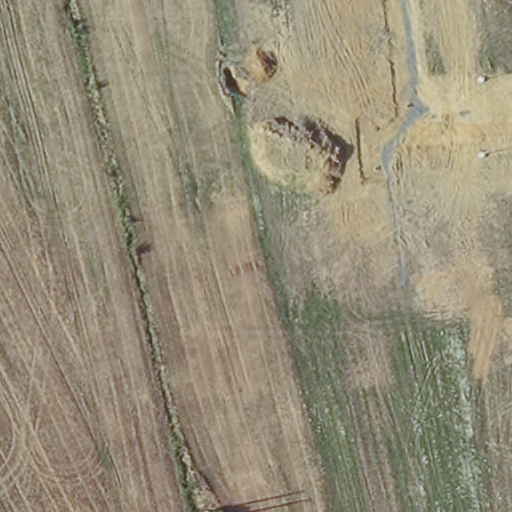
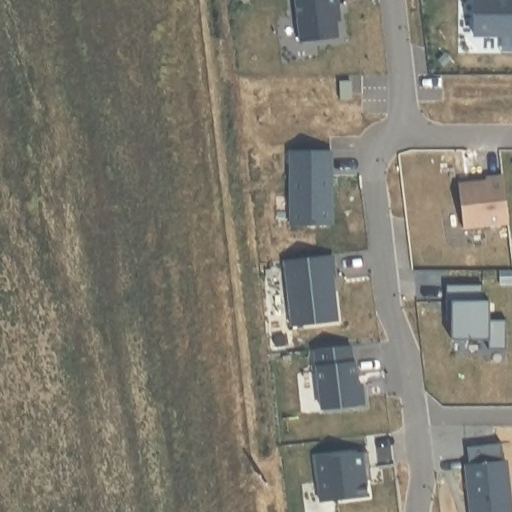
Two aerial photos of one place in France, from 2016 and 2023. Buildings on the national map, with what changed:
new [(339,9),(342,39),(305,44),(299,0),(343,0),(344,9),(339,9)]
new [(512,0),(512,38),(476,37),(476,0),(512,0)]
new [(292,155),(332,155),(332,230),(292,230),(292,155)]
new [(487,181),(487,178),(505,176),(510,223),(465,228),(460,185),(487,181)]
new [(340,321),(292,326),(284,262),(333,255),(340,321)]
new [(490,300),(490,320),(506,319),(506,350),(488,350),(488,340),(452,339),(452,320),(447,320),(447,302),(447,285),(483,285),(483,300),(490,300)]
new [(358,383),(364,382),(366,405),(322,410),(315,352),(352,346),(358,383)]
new [(502,461),(508,459),(512,494),(512,512),(469,512),(464,466),(469,465),(468,447),(500,444),(502,461)]
new [(367,467),(365,468),(368,496),(321,502),(315,460),(367,452),(367,467)]

